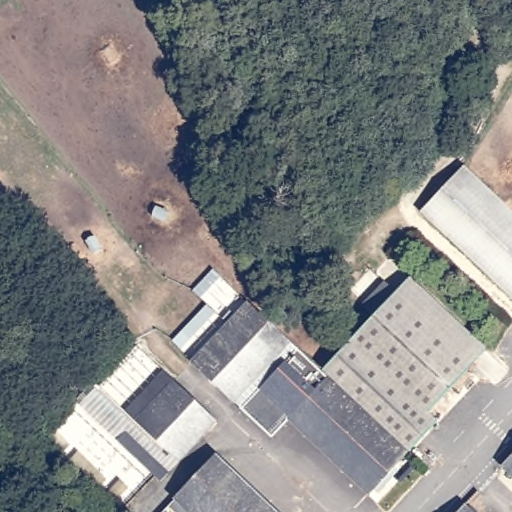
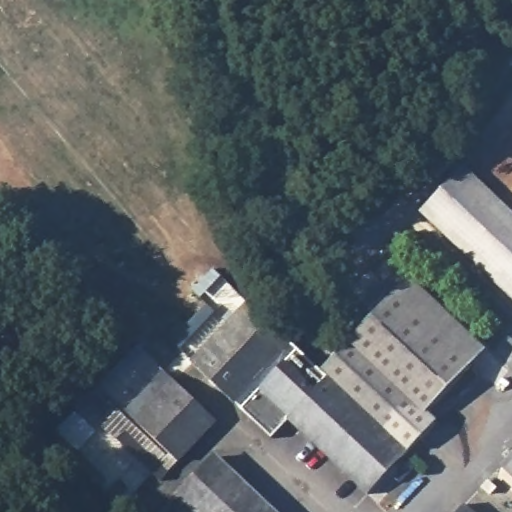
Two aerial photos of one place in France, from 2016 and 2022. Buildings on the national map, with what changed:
unchanged [(462,166),(512,214),(512,298),(420,211),(462,166)]
unchanged [(405,287),(482,359),(436,408),(359,336),(405,287)]
unchanged [(232,401),(192,364),(250,304),(288,341),(232,401)]
unchanged [(330,367),(359,336),(436,408),(446,417),(416,448),(336,373),(330,367)]
unchanged [(379,488),(298,413),(336,373),(416,448),(379,488)]
unchanged [(176,460),(137,422),(175,382),(215,420),(176,460)]
unchanged [(160,484),(82,408),(99,388),(133,419),(137,422),(176,460),(180,464),(160,484)]
unchanged [(168,512),(187,492),(225,452),(288,512),(168,512)]
unchanged [(512,453),(512,474),(502,464),(512,453)]
unchanged [(468,512),(457,512),(462,506),(468,512)]

